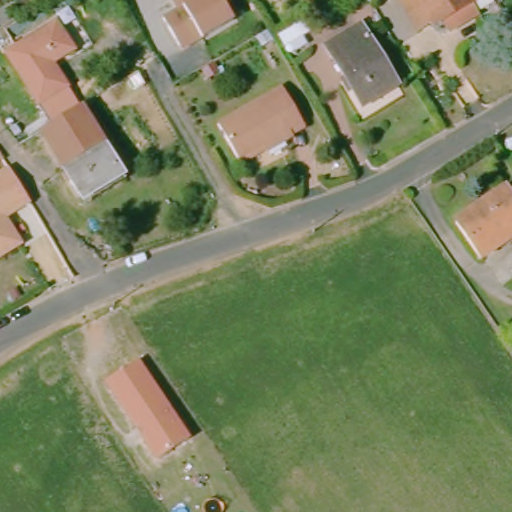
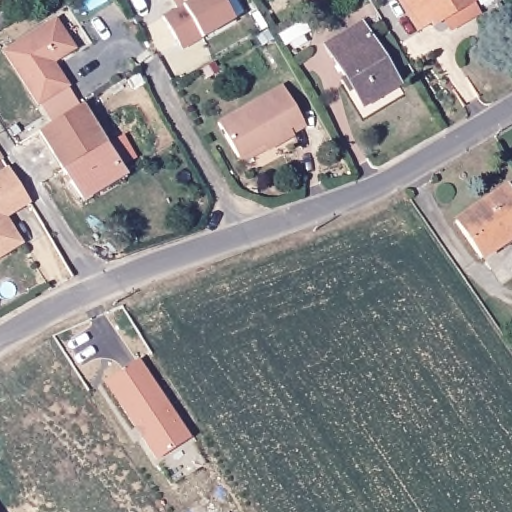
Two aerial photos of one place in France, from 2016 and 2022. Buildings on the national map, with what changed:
unchanged [(161,23),(176,15),(168,0),(216,0),(231,27),(223,31),(200,45),(197,40),(177,52),(161,23)]
unchanged [(445,29),(438,17),(423,25),(421,22),(408,30),(392,0),(468,0),(466,1),(473,13),(445,29)]
unchanged [(273,29),(297,17),(302,27),(278,40),(273,29)]
unchanged [(10,53),(62,22),(80,52),(58,65),(72,90),(42,108),(10,53)]
unchanged [(355,23),(390,85),(355,105),(320,41),(355,23)]
unchanged [(254,41),(265,35),(268,41),(258,47),(254,41)]
unchanged [(233,158),(213,124),(261,97),(278,88),(297,121),(301,129),(288,136),(284,139),(263,151),(237,166),(233,158)]
unchanged [(118,179),(77,203),(37,134),(77,110),(118,179)]
unchanged [(1,155),(5,161),(0,163),(0,152),(1,155)]
unchanged [(10,170),(31,205),(6,220),(22,247),(0,260),(0,176),(10,170)]
unchanged [(451,218),(502,186),(512,200),(512,233),(477,257),(451,218)]
unchanged [(155,461),(102,381),(138,359),(190,439),(155,461)]

